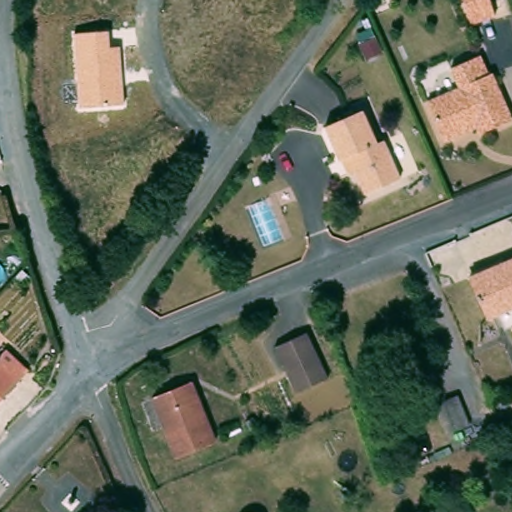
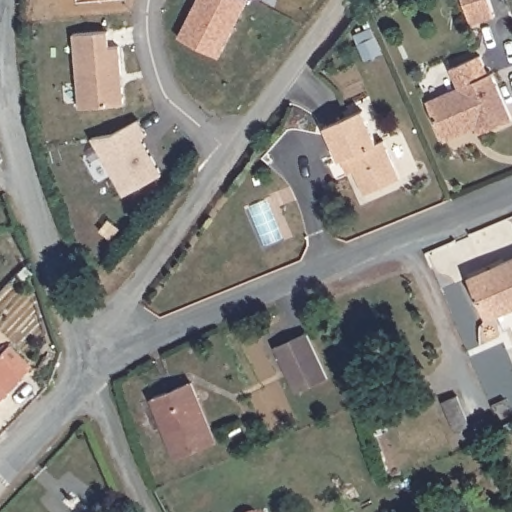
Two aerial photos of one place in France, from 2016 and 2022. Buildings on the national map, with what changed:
new [(196,0),(248,0),(219,57),(178,36),(196,0)]
unchanged [(473,22),(467,0),(493,0),(497,15),(473,22)]
unchanged [(108,31),(110,47),(120,46),(125,104),(81,108),(75,35),(108,31)]
unchanged [(448,67),(477,54),(486,72),(490,70),(510,115),(475,131),(471,124),(442,138),(425,99),(456,85),(448,67)]
unchanged [(378,144),(385,141),(402,179),(370,195),(352,159),(342,163),(326,125),(362,109),(378,144)]
new [(91,136),(115,133),(140,119),(148,134),(141,138),(162,174),(122,194),(91,136)]
unchanged [(472,273),(512,258),(512,308),(490,317),(472,273)]
unchanged [(331,379),(297,393),(277,344),(310,332),(331,379)]
unchanged [(5,351),(26,371),(0,398),(0,356),(5,351)]
unchanged [(219,437),(180,452),(156,392),(193,378),(219,437)]
unchanged [(246,506),(254,506),(258,509),(262,512),(236,512),(237,511),(242,507),(246,506)]

